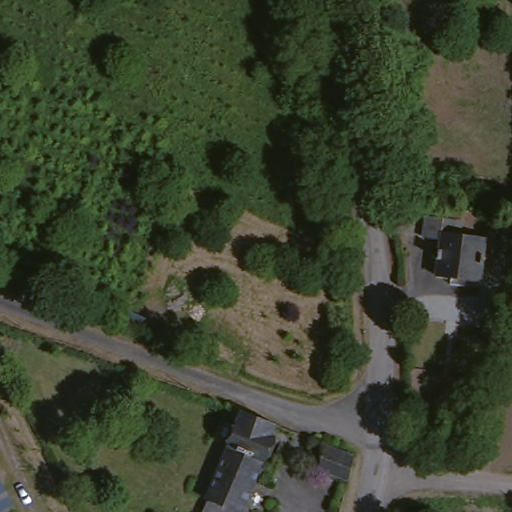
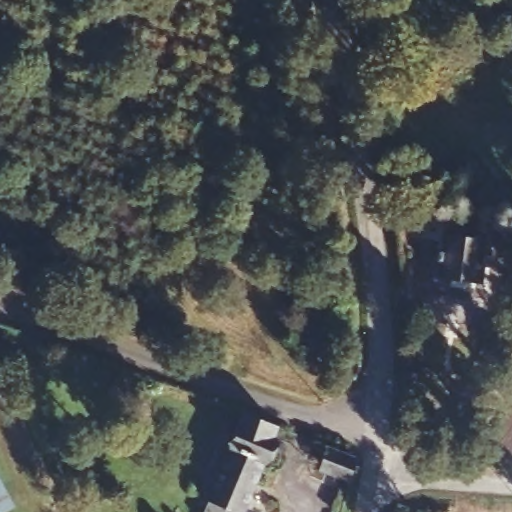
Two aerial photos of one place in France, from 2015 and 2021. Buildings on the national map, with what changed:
unchanged [(414,267),(423,234),(404,230),(411,206),(429,211),(426,227),(478,231),(472,275),(414,267)]
unchanged [(236,412),(270,425),(239,512),(229,512),(203,502),(236,412)]
unchanged [(311,467),(316,455),(317,447),(349,461),(360,465),(351,492),(341,480),(311,467)]
unchanged [(0,512),(0,483),(13,508),(6,512),(0,512)]
unchanged [(229,512),(199,512),(203,502),(229,512)]

